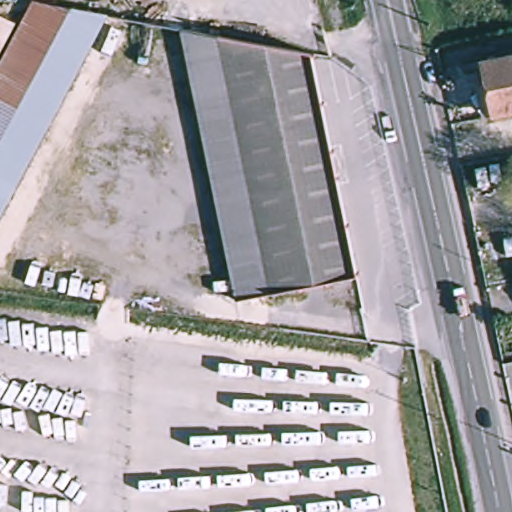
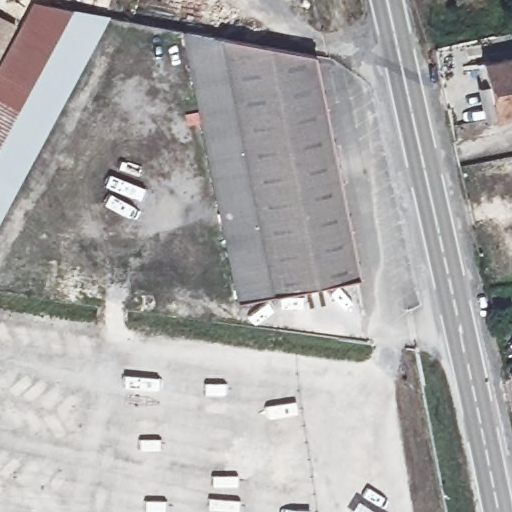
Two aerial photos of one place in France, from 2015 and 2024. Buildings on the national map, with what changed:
unchanged [(113,17),(0,217),(0,75),(41,3),(113,17)]
unchanged [(267,283),(236,289),(188,37),(221,43),(267,283)]
unchanged [(331,270),(267,283),(221,43),(288,55),(331,270)]
unchanged [(497,117),(484,62),(512,56),(512,114),(497,117)]

